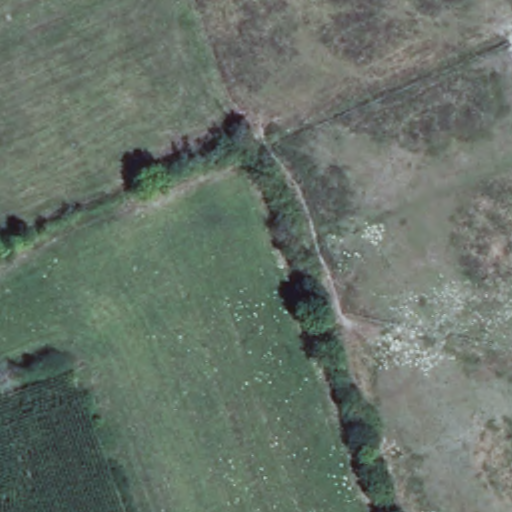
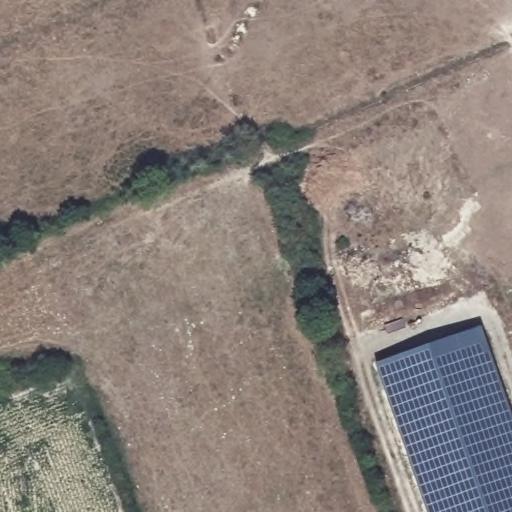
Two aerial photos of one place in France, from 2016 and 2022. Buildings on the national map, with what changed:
new [(512,417),(512,512),(429,512),(377,363),(480,326),(512,417)]

